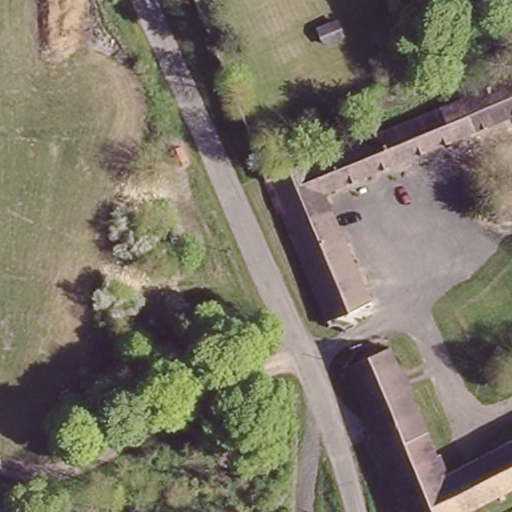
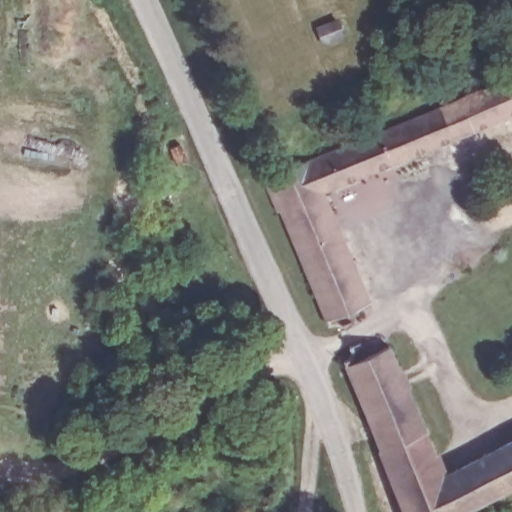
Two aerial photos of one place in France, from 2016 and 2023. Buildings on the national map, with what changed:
unchanged [(512,71),(512,110),(497,77),(512,71)]
unchanged [(497,77),(512,110),(469,128),(457,95),(497,77)]
unchanged [(362,120),(378,114),(384,125),(457,95),(469,128),(322,190),(309,157),(367,132),(362,120)]
unchanged [(322,190),(369,297),(328,319),(326,320),(266,175),(309,157),(322,190)]
unchanged [(402,502),(342,359),(347,357),(386,339),(441,466),(512,432),(512,485),(499,491),(502,498),(495,502),(491,495),(459,511),(459,512),(397,512),(394,506),(402,502)]

